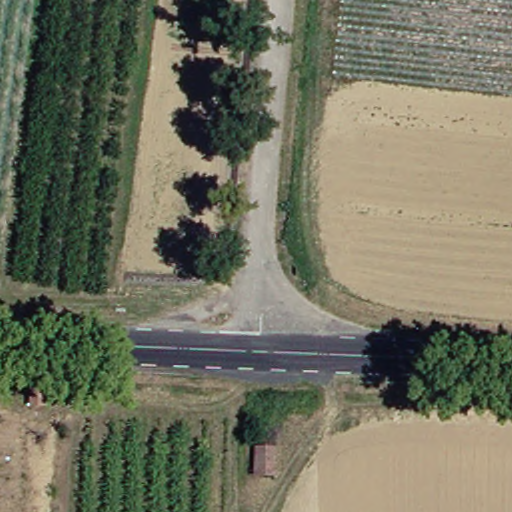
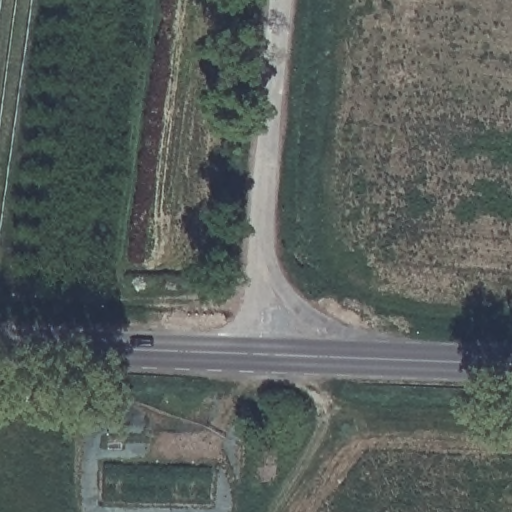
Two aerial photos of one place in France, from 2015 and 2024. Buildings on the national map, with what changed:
unchanged [(45,376),(60,377),(60,394),(44,394),(45,376)]
unchanged [(255,480),(255,453),(279,454),(278,482),(255,480)]

